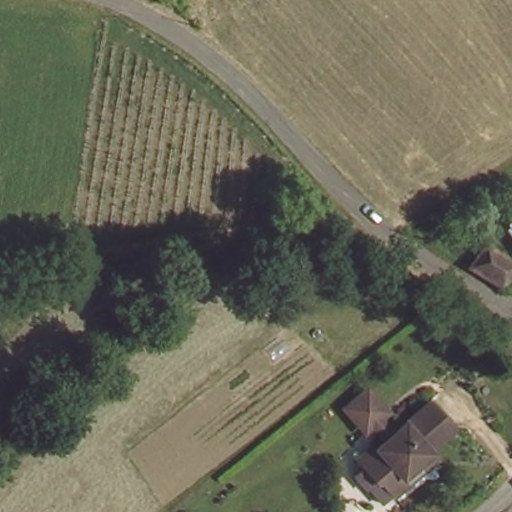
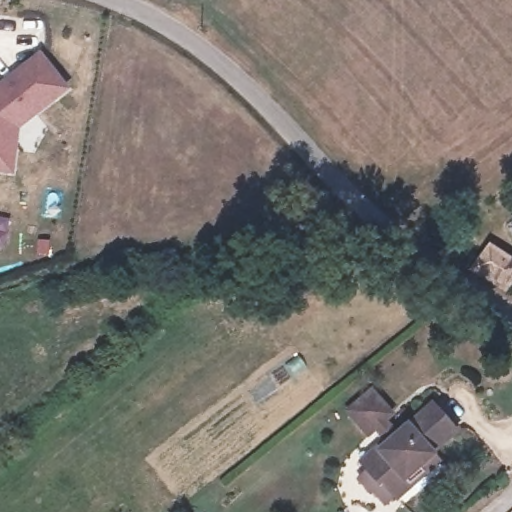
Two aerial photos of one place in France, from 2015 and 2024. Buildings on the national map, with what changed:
new [(26,67),(40,56),(67,90),(53,101),(18,129),(12,173),(0,172),(0,87),(26,67)]
unchanged [(512,264),(512,273),(503,290),(471,272),(484,247),(512,264)]
unchanged [(360,377),(377,396),(376,403),(361,417),(354,416),(338,397),(360,377)]
unchanged [(416,486),(402,499),(388,482),(384,483),(369,465),(367,462),(381,448),(384,451),(437,404),(459,428),(438,449),(440,452),(445,459),(416,486)]

